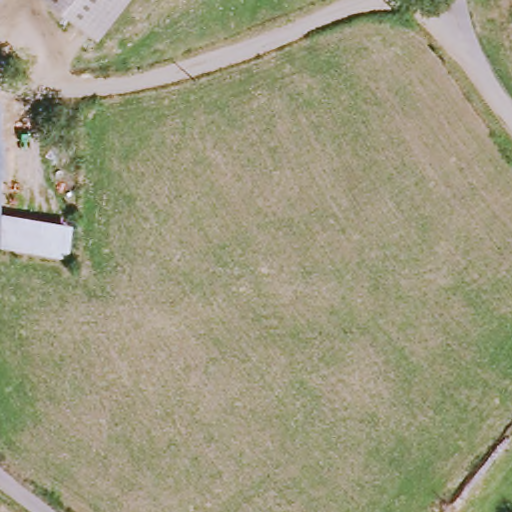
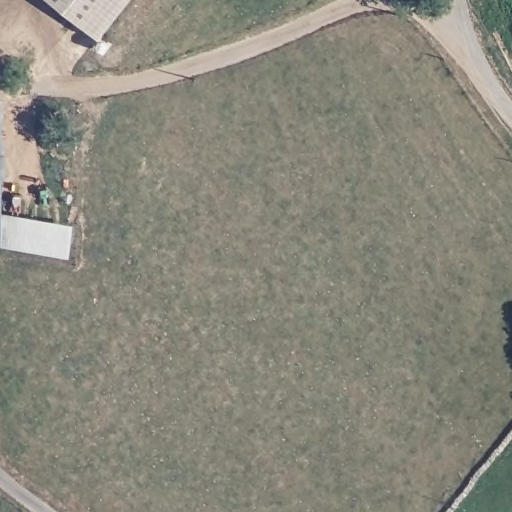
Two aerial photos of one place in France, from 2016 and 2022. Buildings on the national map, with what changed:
unchanged [(45,0),(127,0),(96,40),(45,0)]
unchanged [(71,261),(0,242),(0,214),(72,235),(71,261)]

